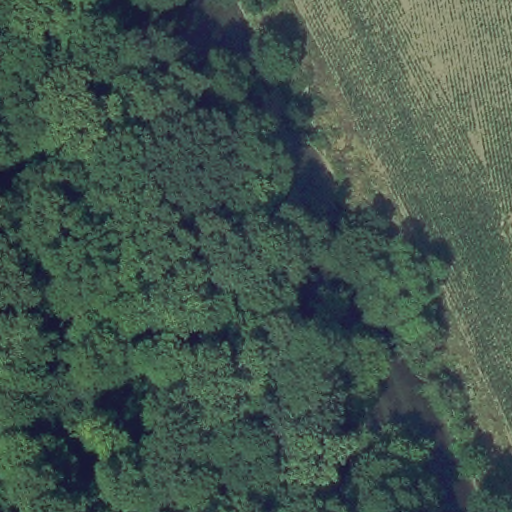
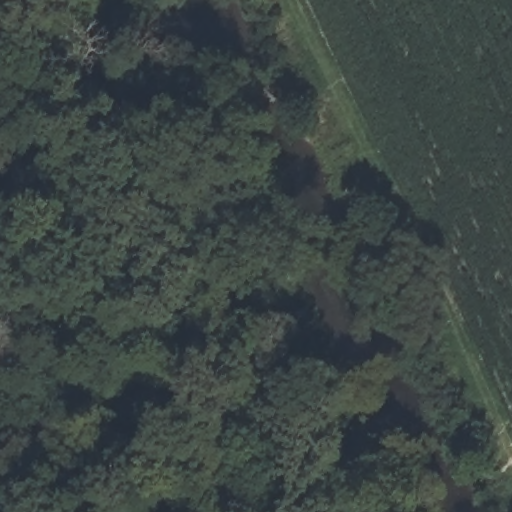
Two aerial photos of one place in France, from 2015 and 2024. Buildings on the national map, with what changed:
unchanged [(290,101),(318,89),(334,125),(304,136),(290,101)]

